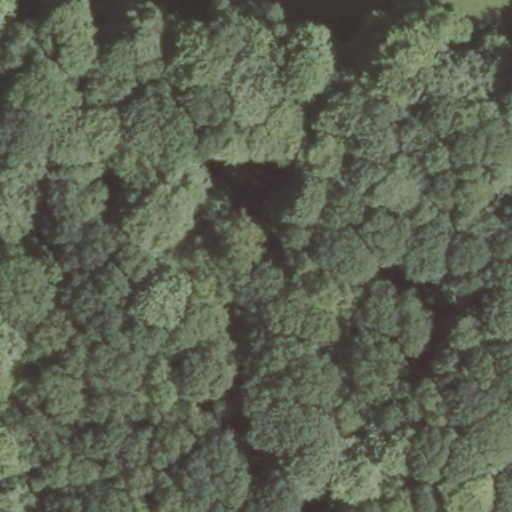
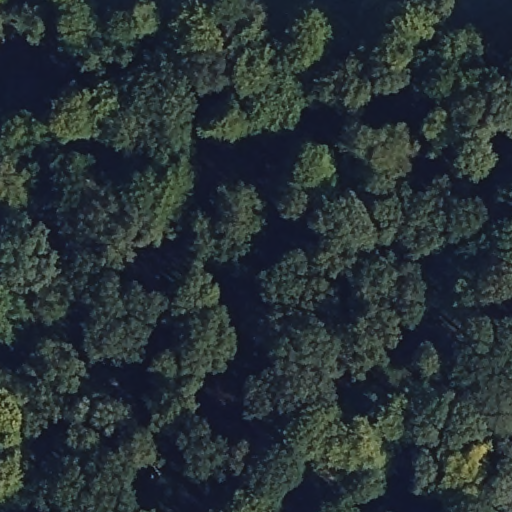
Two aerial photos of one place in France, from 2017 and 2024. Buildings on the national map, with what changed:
unchanged [(0,116),(0,95),(9,113),(0,116)]

